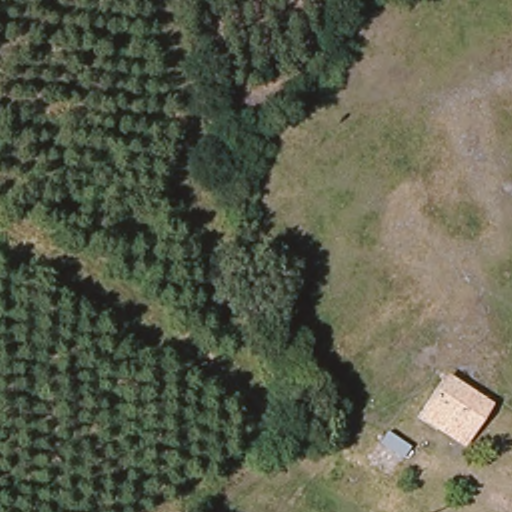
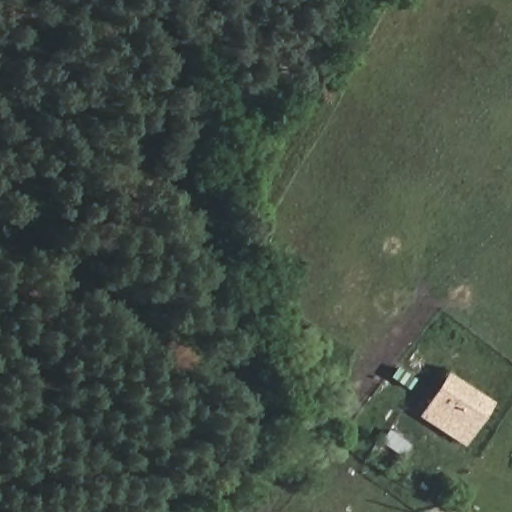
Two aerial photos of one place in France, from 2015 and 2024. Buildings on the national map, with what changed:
unchanged [(490,407),(460,450),(415,419),(445,377),(490,407)]
unchanged [(380,431),(396,443),(399,437),(416,451),(408,468),(375,444),(380,431)]

